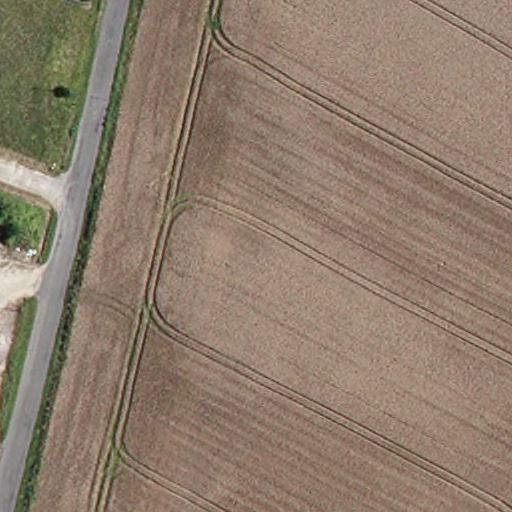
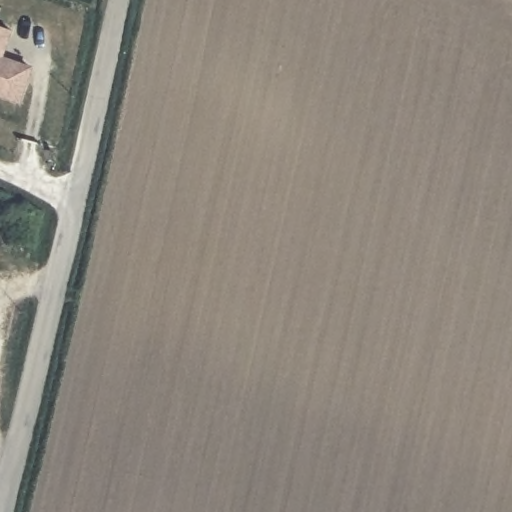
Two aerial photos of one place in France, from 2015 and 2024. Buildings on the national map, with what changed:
new [(33,66),(20,104),(0,97),(0,26),(11,30),(4,56),(33,66)]

